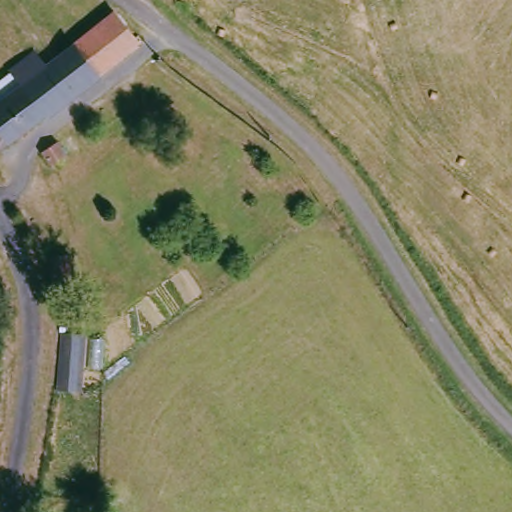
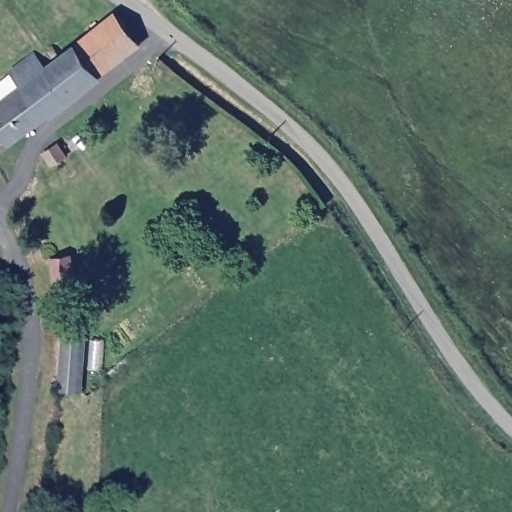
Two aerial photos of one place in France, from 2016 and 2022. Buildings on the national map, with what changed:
unchanged [(0,153),(0,103),(28,83),(18,69),(42,51),(53,64),(122,13),(145,44),(0,153)]
unchanged [(56,144),(64,156),(52,164),(44,151),(56,144)]
unchanged [(52,259),(70,255),(73,277),(70,279),(70,285),(67,288),(59,288),(55,282),(52,259)]
unchanged [(67,334),(86,336),(82,391),(62,389),(67,334)]

